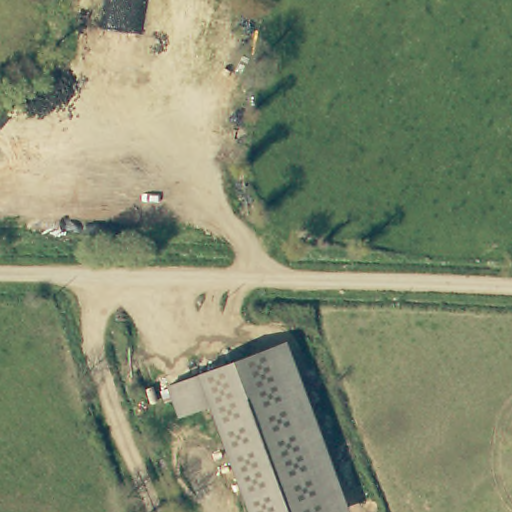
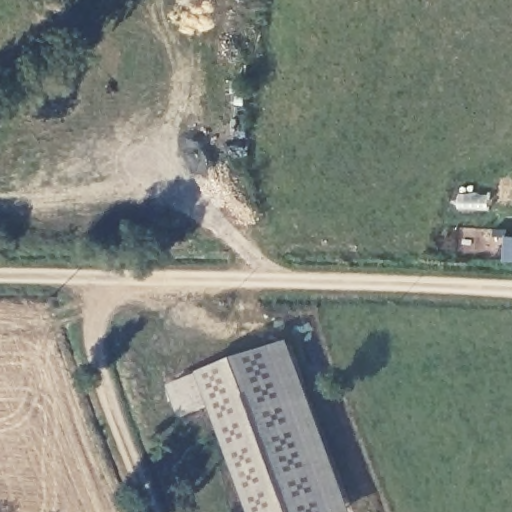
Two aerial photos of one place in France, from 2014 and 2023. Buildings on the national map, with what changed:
new [(503,236),(512,236),(512,262),(502,262),(503,236)]
unchanged [(344,512),(250,512),(214,400),(205,371),(290,343),(344,512)]
unchanged [(182,410),(173,382),(205,371),(214,400),(182,410)]

